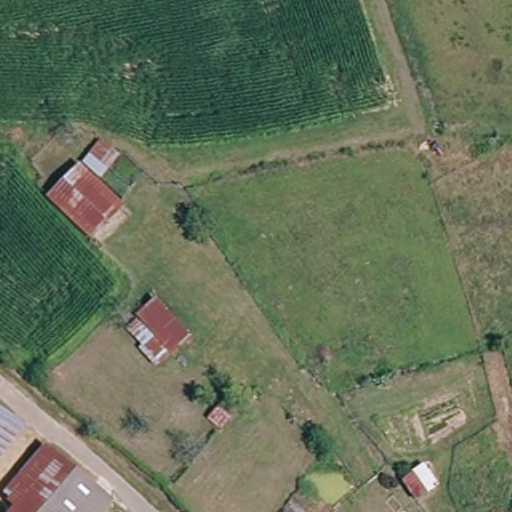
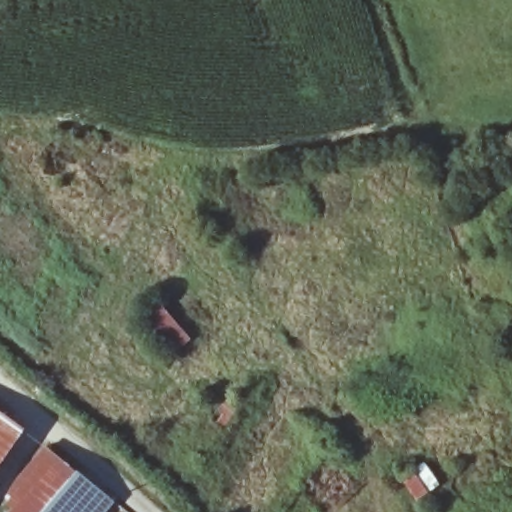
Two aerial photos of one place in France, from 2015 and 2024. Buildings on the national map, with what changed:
demolished [(49,196),(82,162),(100,138),(123,155),(100,181),(125,208),(92,239),(49,196)]
unchanged [(135,321),(158,298),(194,338),(168,361),(135,321)]
unchanged [(0,470),(0,407),(31,426),(0,470)]
unchanged [(1,499),(46,444),(118,498),(105,512),(13,512),(16,509),(1,499)]

